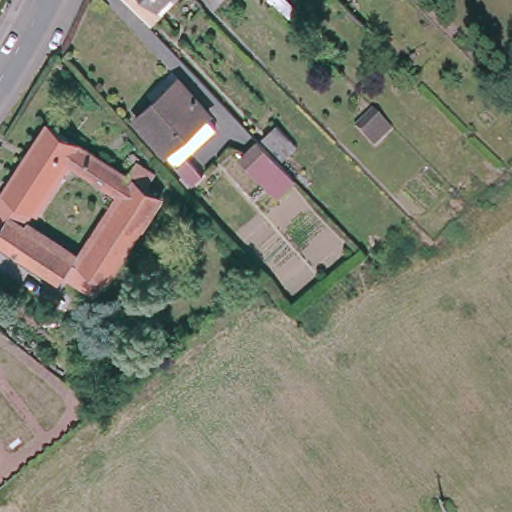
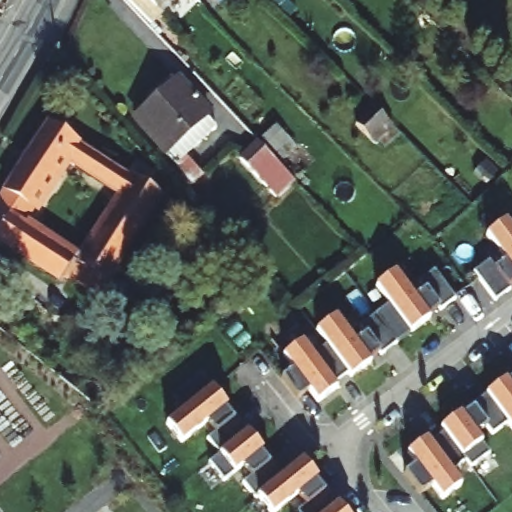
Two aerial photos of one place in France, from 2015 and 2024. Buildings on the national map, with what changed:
unchanged [(163,8),(167,13),(153,27),(128,0),(171,0),(163,8)]
unchanged [(208,115),(205,117),(215,129),(185,155),(202,175),(192,184),(134,120),(177,81),(208,115)]
unchanged [(60,281),(0,242),(0,197),(47,124),(127,177),(136,162),(154,174),(144,188),(159,198),(96,297),(69,279),(64,275),(60,281)]
demolished [(282,160),(262,139),(275,125),(295,147),(282,160)]
unchanged [(275,198),(239,160),(257,142),(294,180),(275,198)]
new [(489,260),(496,269),(503,262),(486,238),(505,224),(512,234),(512,289),(493,300),(474,274),(489,260)]
new [(292,372),(282,358),(302,343),(312,357),(327,346),(317,332),(335,319),(355,344),(367,335),(360,326),(386,306),(374,288),(395,273),(415,299),(426,291),(419,283),(432,273),(452,301),(409,331),(368,361),(371,365),(351,379),(344,370),(330,382),(337,389),(317,405),(307,392),(299,399),(284,380),(292,372)]
new [(282,474),(302,457),(345,512),(301,512),(297,507),(302,502),(297,495),(275,512),(267,512),(242,481),(247,475),(242,469),(235,474),(230,468),(222,478),(208,461),(219,451),(206,435),(213,430),(206,423),(180,442),(165,423),(184,408),(174,396),(200,374),(212,387),(282,474)]
new [(512,433),(503,422),(489,433),(485,427),(476,434),(489,452),(470,467),(464,456),(449,469),(460,483),(440,499),(430,486),(420,494),(405,474),(415,466),(407,453),(512,375),(512,433)]

